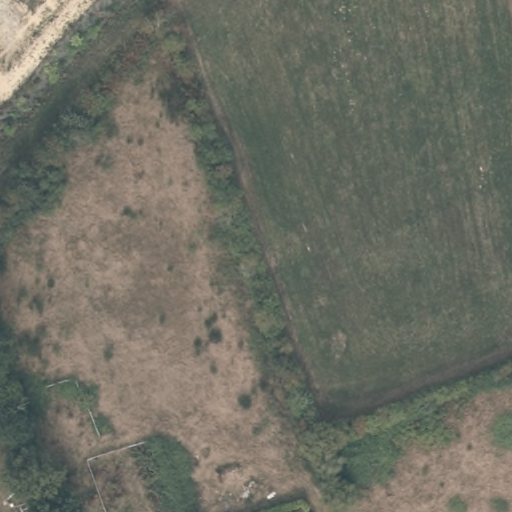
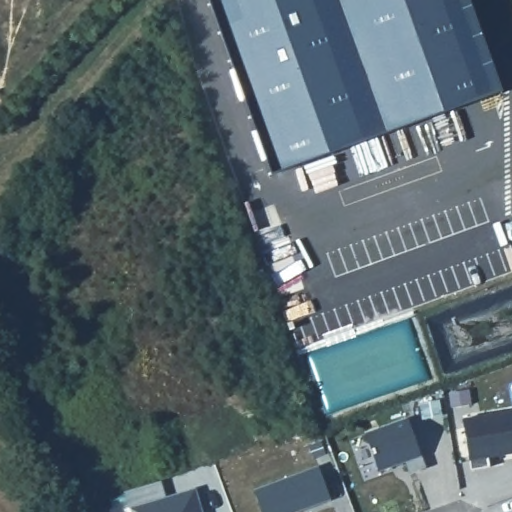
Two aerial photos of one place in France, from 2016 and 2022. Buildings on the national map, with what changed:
new [(506,92),(272,174),(209,0),(473,0),(506,92)]
new [(512,454),(489,458),(491,468),(472,471),(463,419),(512,412),(512,454)]
new [(408,418),(426,467),(410,472),(407,461),(380,471),(366,433),(408,418)]
new [(332,499),(298,512),(262,512),(254,490),(319,466),(332,499)]
new [(166,498),(196,489),(203,512),(131,512),(125,491),(161,481),(166,498)]

